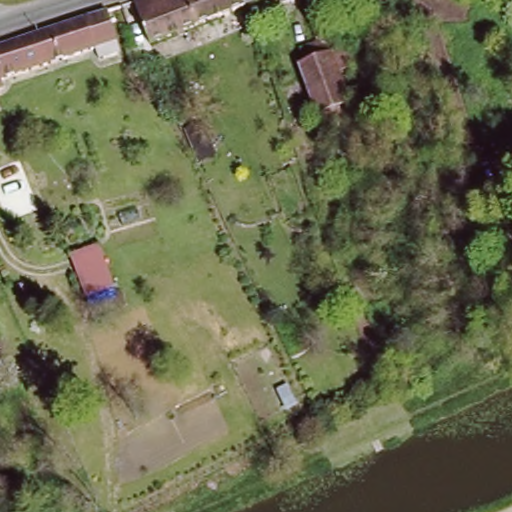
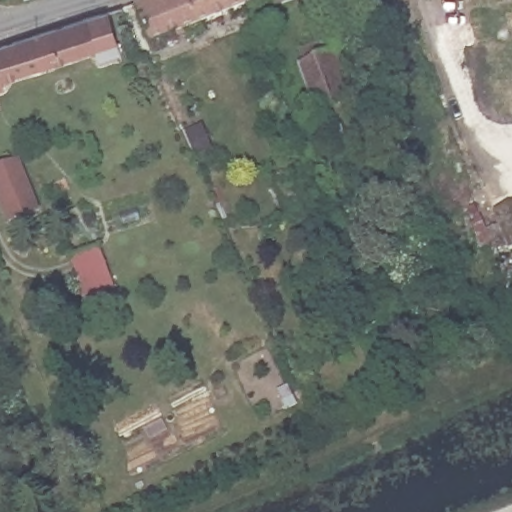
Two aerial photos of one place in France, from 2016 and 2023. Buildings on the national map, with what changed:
unchanged [(135,2),(142,0),(242,0),(244,8),(151,45),(135,2)]
unchanged [(265,0),(244,8),(242,0),(265,0)]
unchanged [(316,116),(297,65),(303,64),(299,50),(319,44),(311,21),(314,20),(311,10),(324,5),(330,17),(334,27),(339,26),(341,30),(336,32),(341,49),(351,45),(359,69),(339,76),(349,104),(316,116)]
unchanged [(84,18),(106,12),(116,42),(70,59),(73,67),(66,70),(63,61),(0,84),(0,47),(84,18)]
unchanged [(349,104),(359,132),(326,145),(316,116),(349,104)]
new [(17,161),(35,210),(5,222),(0,207),(0,168),(17,161)]
unchanged [(86,299),(69,256),(99,245),(114,290),(86,299)]

